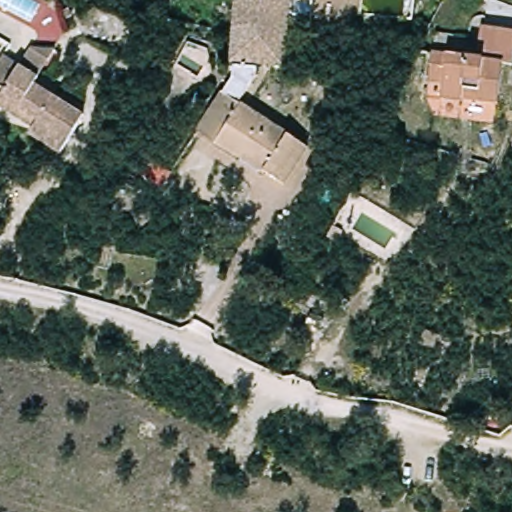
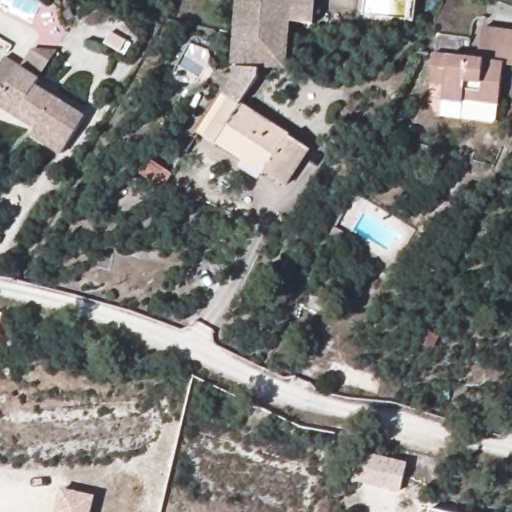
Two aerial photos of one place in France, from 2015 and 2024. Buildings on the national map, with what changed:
unchanged [(253,69),(254,78),(234,106),(218,97),(230,80),(228,68),(223,68),(235,0),(293,0),(283,67),(253,69)]
unchanged [(473,52),(476,24),(512,28),(512,33),(509,62),(501,61),(496,100),(472,97),(471,105),(442,102),(445,75),(430,73),(433,47),(473,52)]
unchanged [(25,72),(36,56),(50,65),(36,87),(87,116),(65,156),(31,138),(35,130),(0,110),(0,74),(6,62),(25,72)]
unchanged [(213,142),(210,148),(193,138),(217,97),(218,97),(234,106),(304,147),(283,183),(261,170),(238,157),(213,142)]
unchanged [(508,140),(512,130),(512,142),(508,140)]
unchanged [(178,176),(168,190),(143,173),(152,159),(178,176)]
unchanged [(336,312),(325,339),(294,324),(305,298),(336,312)]
new [(398,487),(382,484),(351,477),(357,450),(389,458),(404,461),(398,487)]
new [(60,486),(92,493),(88,512),(54,512),(60,486)]
new [(426,506),(449,512),(425,512),(426,506)]

